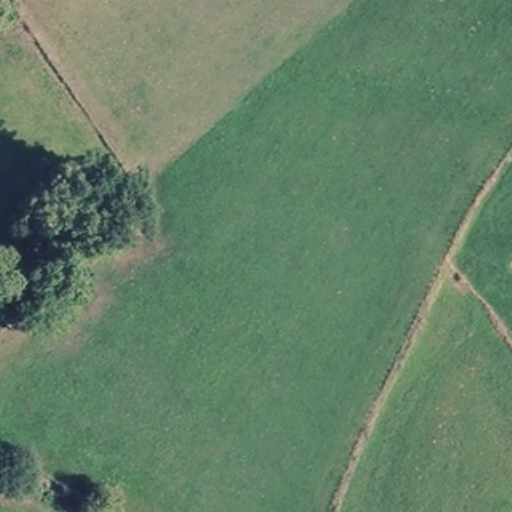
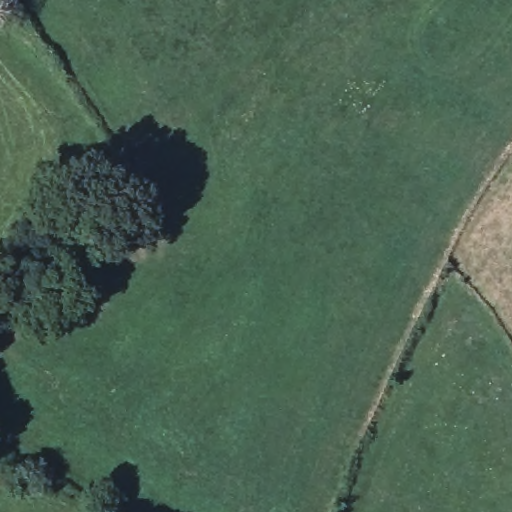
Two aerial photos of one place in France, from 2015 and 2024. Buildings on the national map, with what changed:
[]

